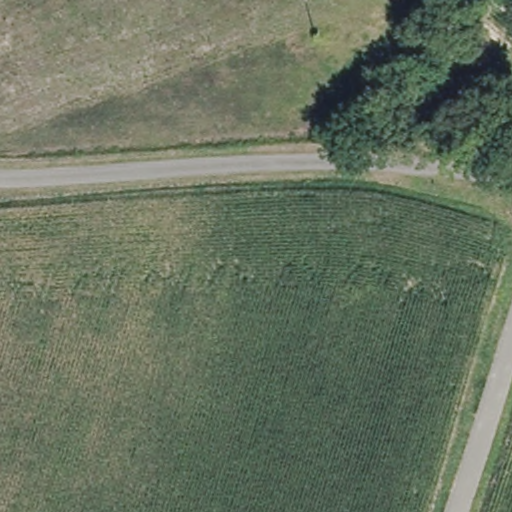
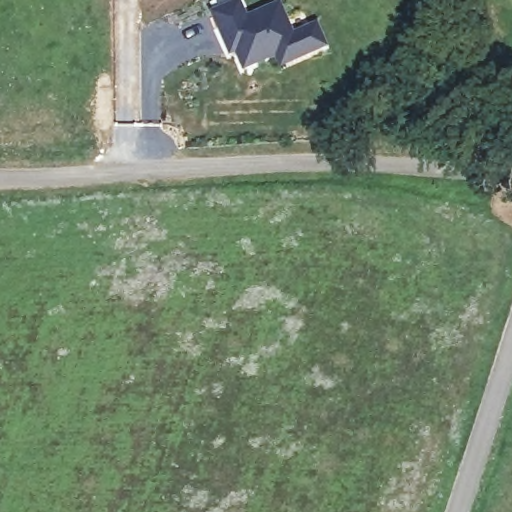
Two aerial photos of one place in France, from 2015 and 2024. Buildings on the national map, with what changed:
new [(241,0),(248,16),(280,2),(293,32),(315,24),(326,48),(279,71),(273,60),(241,74),(234,56),(227,59),(209,15),(239,0),(241,0)]

